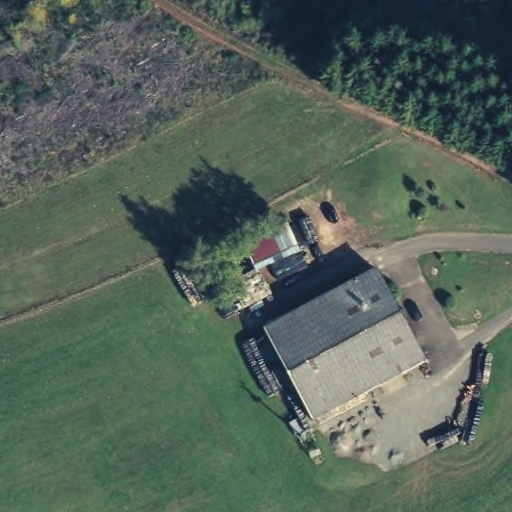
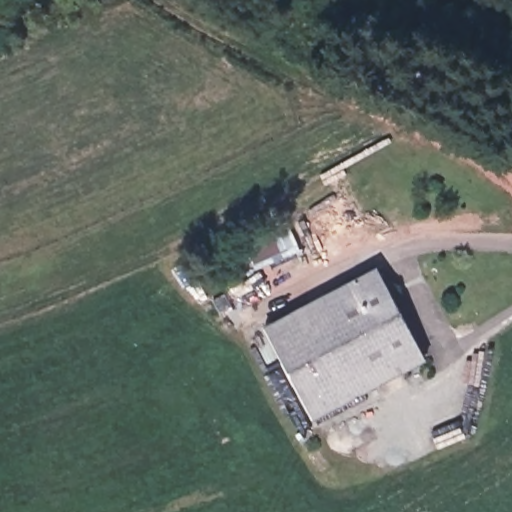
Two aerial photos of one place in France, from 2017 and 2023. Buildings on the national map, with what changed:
unchanged [(427,345),(312,416),(262,331),(375,262),(427,345)]

